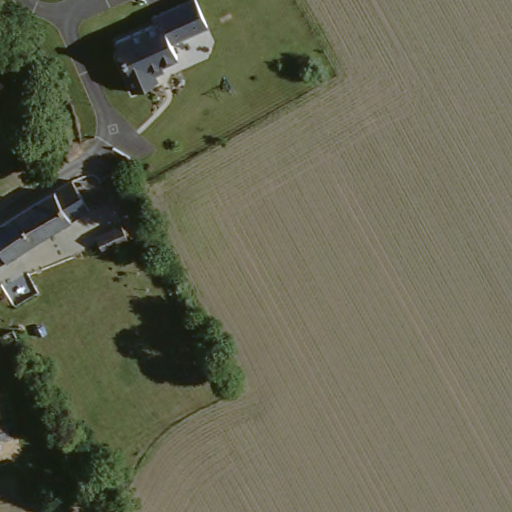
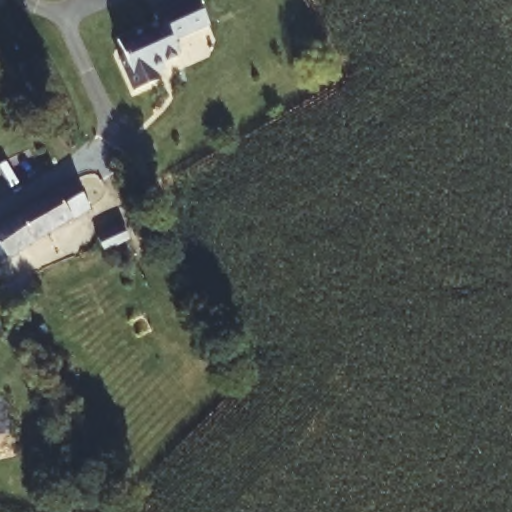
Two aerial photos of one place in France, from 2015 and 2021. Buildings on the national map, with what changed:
unchanged [(153,72),(156,80),(136,89),(121,55),(126,53),(119,39),(154,22),(151,15),(183,0),(195,0),(206,24),(169,41),(176,55),(160,62),(162,68),(153,72)]
unchanged [(71,180),(88,208),(6,260),(0,263),(0,225),(17,214),(71,180)]
unchanged [(95,238),(121,225),(129,239),(101,252),(95,238)]

